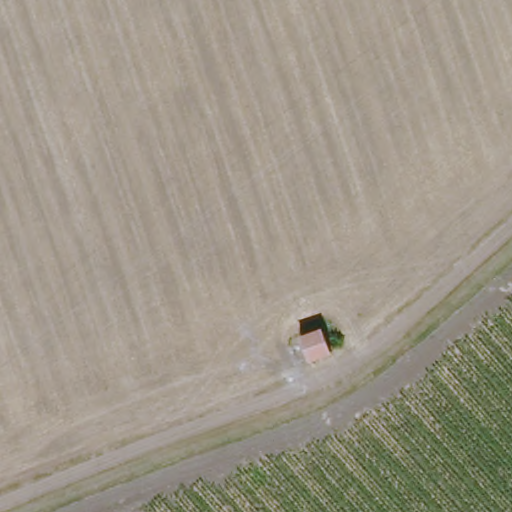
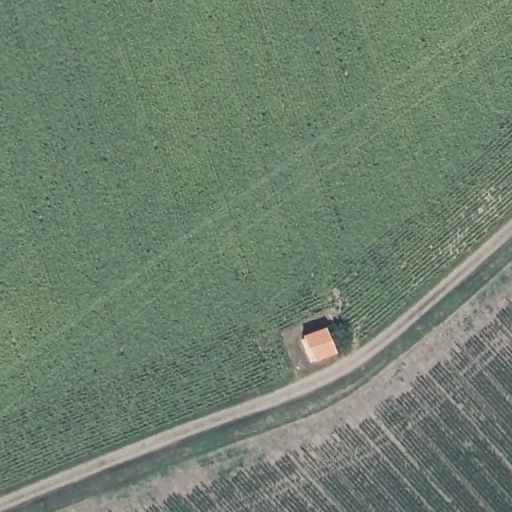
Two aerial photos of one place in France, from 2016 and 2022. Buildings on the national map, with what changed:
unchanged [(303,338),(328,330),(337,354),(312,365),(303,338)]

